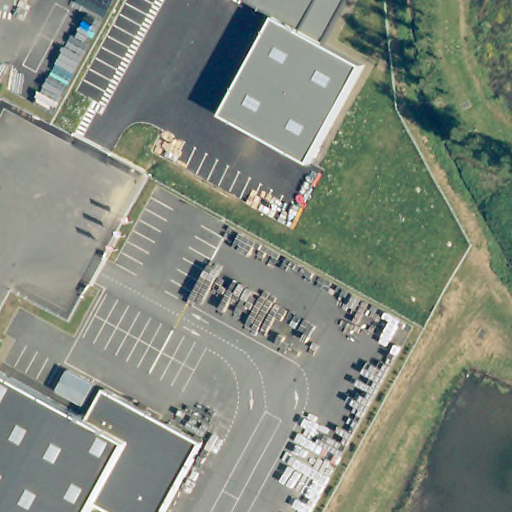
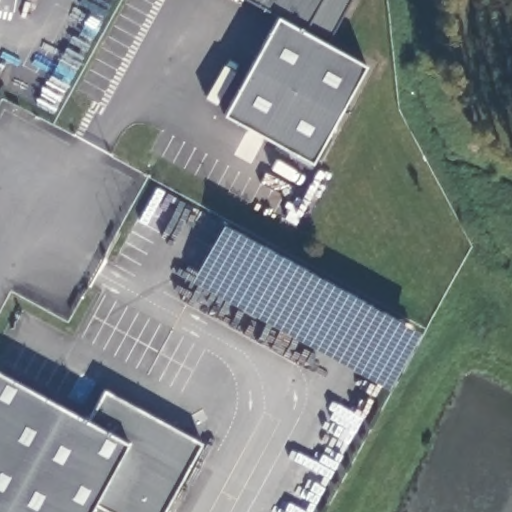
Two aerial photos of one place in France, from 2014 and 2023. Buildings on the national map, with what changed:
unchanged [(366,64),(313,164),(223,115),(277,16),(248,0),(349,0),(326,41),(366,64)]
new [(388,388),(191,282),(224,223),(421,332),(388,388)]
unchanged [(165,512),(108,512),(94,504),(90,512),(0,512),(0,371),(87,419),(105,389),(202,444),(165,512)]

